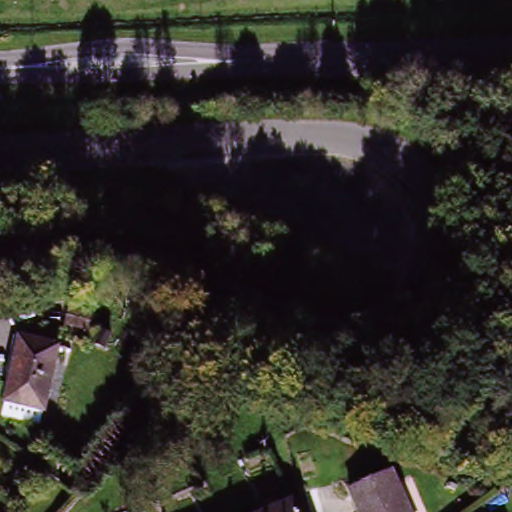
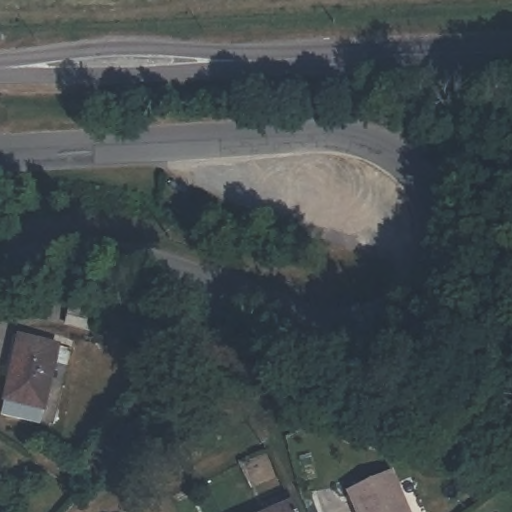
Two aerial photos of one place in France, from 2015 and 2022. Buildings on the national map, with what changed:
unchanged [(86,309),(81,324),(54,314),(59,300),(86,309)]
unchanged [(40,414),(0,401),(0,399),(15,359),(19,361),(30,331),(65,344),(40,414)]
unchanged [(345,493),(391,476),(407,512),(353,512),(345,493)]
unchanged [(292,503),(296,512),(274,512),(292,503)]

